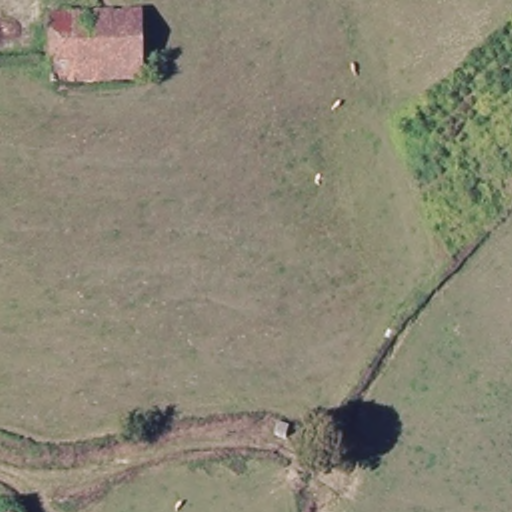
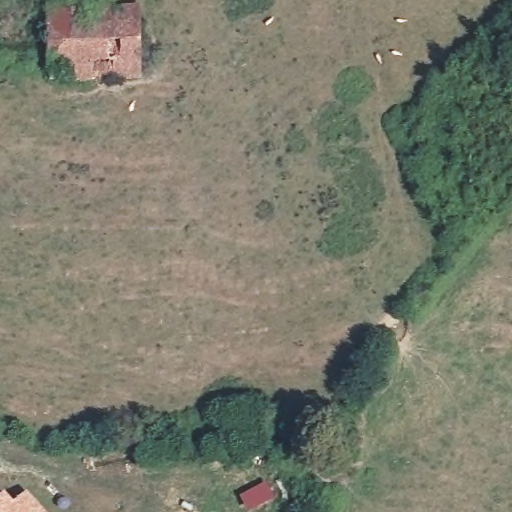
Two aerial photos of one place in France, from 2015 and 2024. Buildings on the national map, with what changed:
unchanged [(146,15),(144,82),(51,77),(52,58),(55,13),(146,15)]
new [(5,491),(15,501),(27,491),(45,512),(0,512),(0,495),(5,491)]
demolished [(1,512),(14,503),(22,512),(1,512)]

